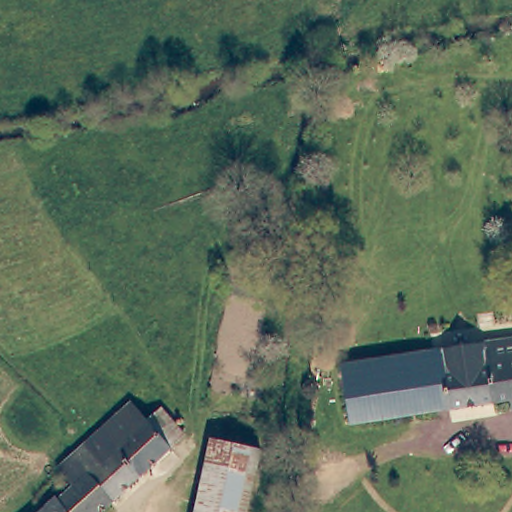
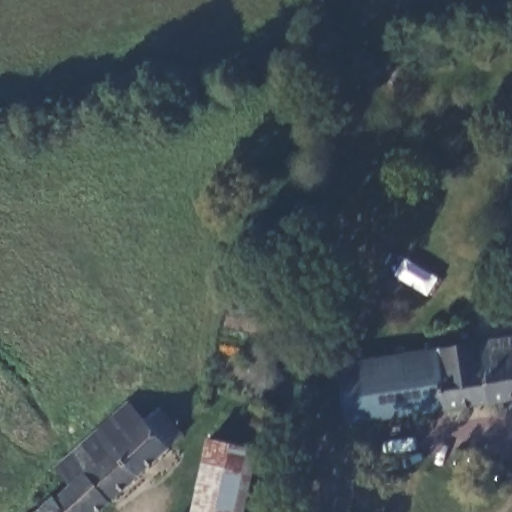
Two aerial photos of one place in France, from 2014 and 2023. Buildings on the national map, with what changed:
unchanged [(512,396),(445,404),(444,399),(435,343),(512,335),(512,396)]
unchanged [(337,361),(435,343),(444,399),(348,419),(337,361)]
unchanged [(70,457),(131,402),(145,420),(160,408),(182,435),(110,501),(70,457)]
unchanged [(211,440),(258,450),(255,464),(243,512),(195,512),(211,440)]
unchanged [(55,496),(58,498),(73,485),(59,468),(70,457),(110,501),(98,512),(37,512),(55,496)]

